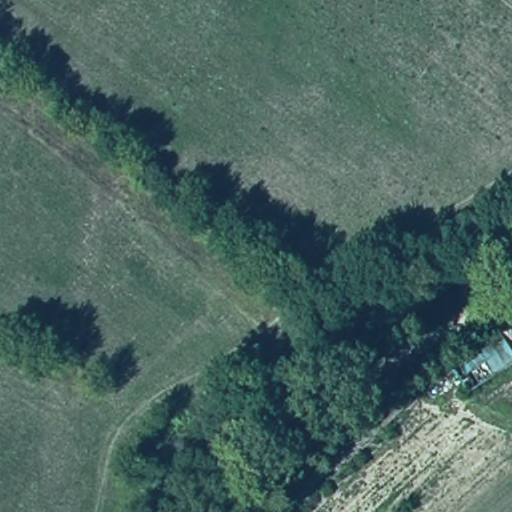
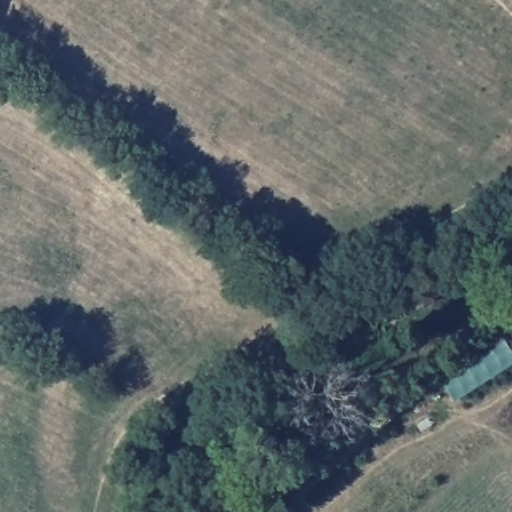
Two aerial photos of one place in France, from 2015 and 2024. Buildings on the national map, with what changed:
unchanged [(512,351),(510,353),(512,357),(512,366),(465,396),(446,367),(511,329),(512,331),(512,351)]

